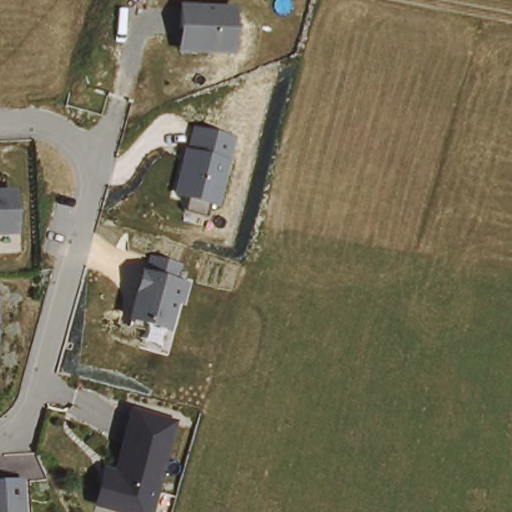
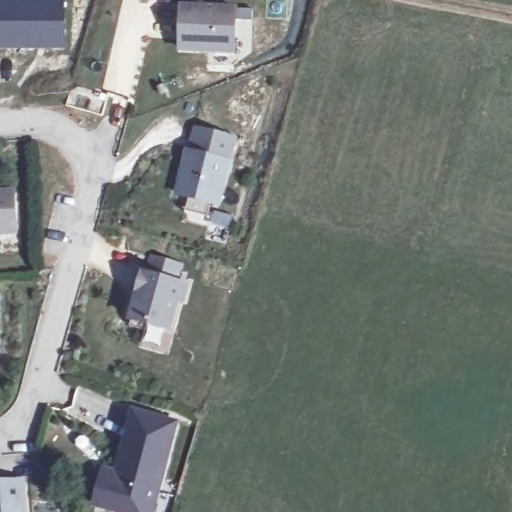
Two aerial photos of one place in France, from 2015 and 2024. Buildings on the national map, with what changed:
new [(65,48),(0,49),(0,0),(64,0),(65,48)]
unchanged [(180,9),(233,11),(231,53),(189,52),(179,52),(179,31),(180,9)]
unchanged [(190,209),(193,197),(178,194),(188,152),(191,152),(196,130),(233,139),(218,204),(216,203),(213,215),(190,209)]
unchanged [(14,193),(17,234),(0,235),(0,194),(14,193)]
unchanged [(133,310),(144,266),(177,274),(187,277),(183,292),(178,290),(169,320),(133,310)]
unchanged [(149,494),(144,512),(107,512),(103,511),(110,482),(117,485),(136,416),(178,427),(158,497),(149,494)]
unchanged [(25,512),(0,512),(0,481),(23,480),(25,512)]

